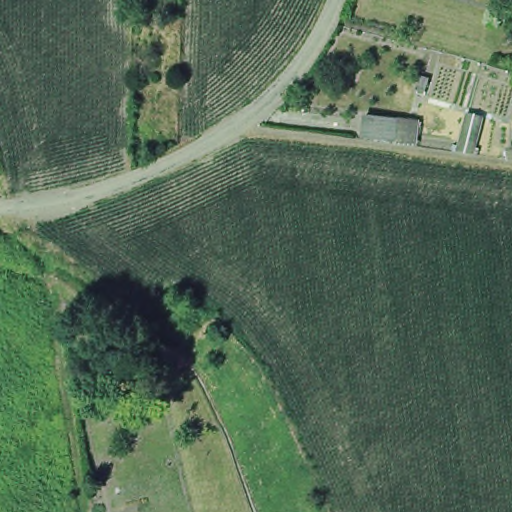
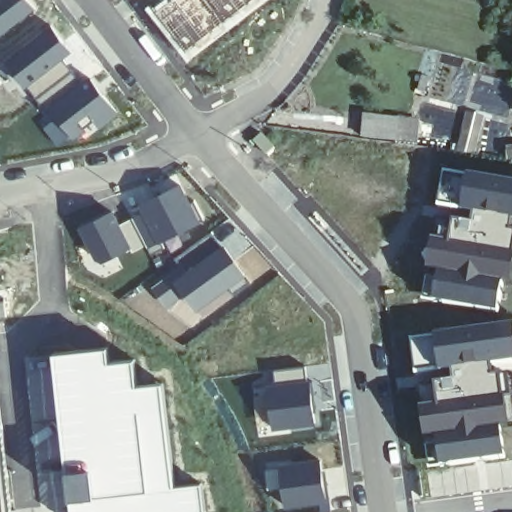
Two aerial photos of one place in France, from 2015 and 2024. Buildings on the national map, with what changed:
new [(156,0),(260,0),(189,60),(149,5),(156,0)]
new [(59,37),(71,52),(25,89),(12,73),(59,37)]
new [(81,88),(90,81),(100,97),(104,95),(119,113),(99,129),(94,123),(75,138),(52,110),(47,114),(36,100),(70,74),(81,88)]
unchanged [(416,141),(356,137),(357,110),(419,119),(416,141)]
new [(512,171),(512,223),(505,276),(500,277),(497,302),(428,293),(430,266),(422,263),(440,160),(512,171)]
new [(112,210),(130,250),(96,265),(80,226),(112,210)]
new [(182,299),(165,311),(150,290),(217,240),(242,275),(194,313),(182,299)]
demolished [(162,309),(175,300),(187,315),(175,325),(162,309)]
new [(511,317),(512,330),(512,355),(496,355),(505,425),(500,425),(500,451),(420,460),(405,330),(511,317)]
new [(100,351),(128,351),(130,375),(154,375),(165,477),(194,472),(199,501),(87,512),(65,512),(52,341),(100,339),(100,351)]
new [(307,372),(312,416),(269,420),(263,380),(307,372)]
new [(0,512),(0,443),(7,512),(0,512)]
new [(318,454),(325,503),(279,510),(272,460),(318,454)]

